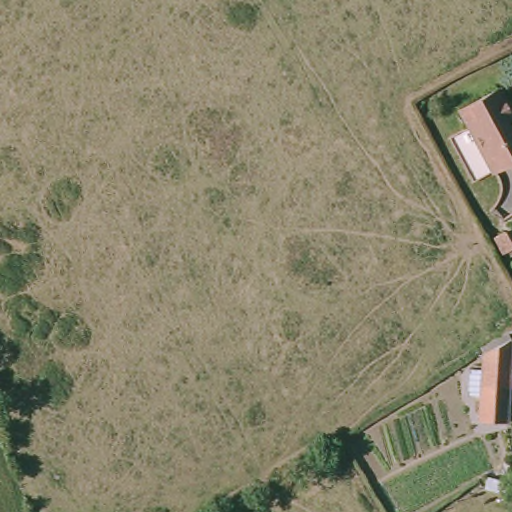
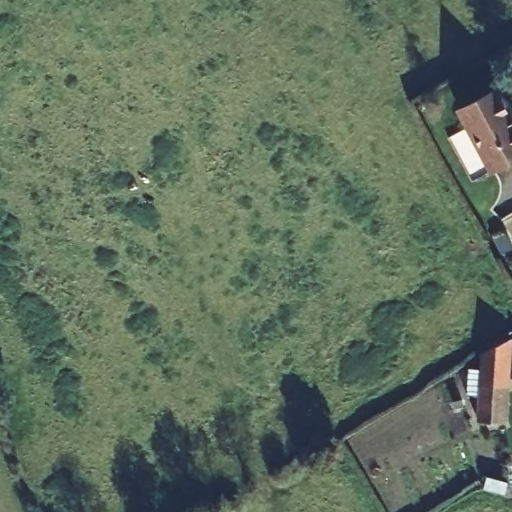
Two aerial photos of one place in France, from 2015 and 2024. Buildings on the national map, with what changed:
unchanged [(498,84),(512,112),(512,161),(488,175),(454,111),(498,84)]
unchanged [(479,394),(481,369),(481,365),(507,351),(505,383),(504,395),(501,424),(477,422),(479,406),(479,394)]

